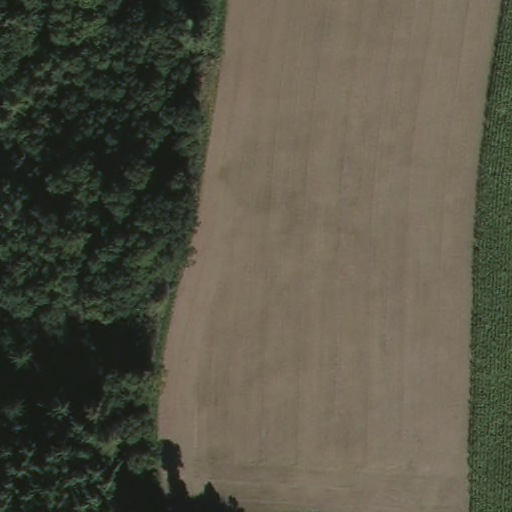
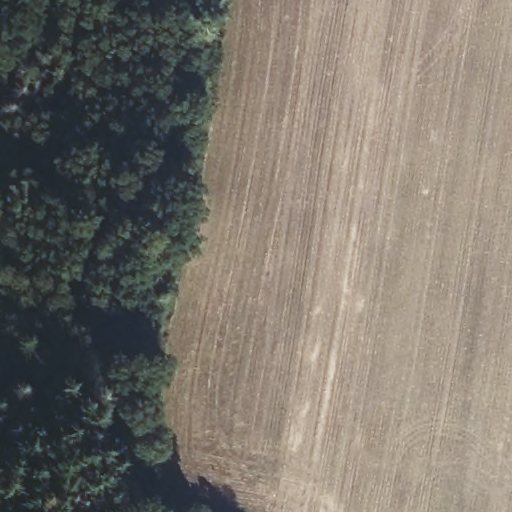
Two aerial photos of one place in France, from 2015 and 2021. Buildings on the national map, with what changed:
[]

